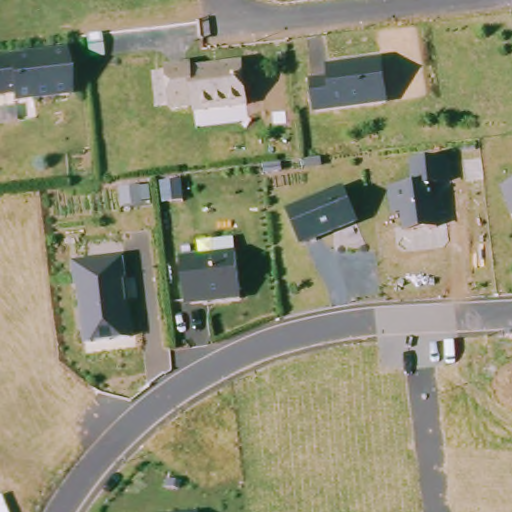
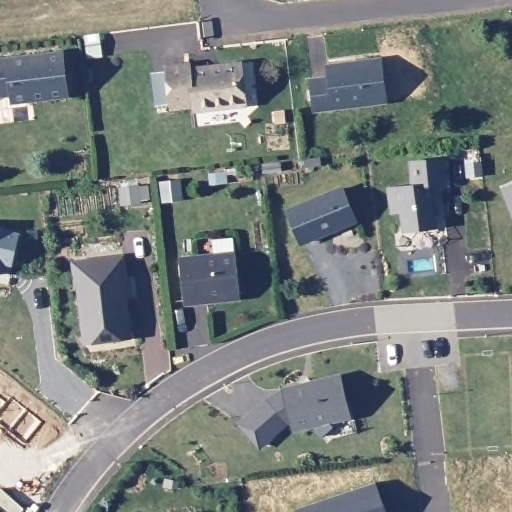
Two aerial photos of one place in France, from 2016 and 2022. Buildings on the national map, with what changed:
unchanged [(68,96),(13,103),(12,95),(0,96),(0,61),(63,54),(68,96)]
unchanged [(315,80),(333,78),(332,66),(383,59),(389,101),(318,111),(315,80)]
unchanged [(188,68),(189,73),(240,68),(245,110),(193,116),(192,111),(170,113),(165,71),(188,68)]
unchanged [(442,159),(445,182),(430,184),(435,227),(403,231),(401,211),(391,213),(388,188),(413,185),(410,163),(442,159)]
unchanged [(279,164),(280,171),(263,173),(262,166),(279,164)]
unchanged [(160,200),(158,182),(176,180),(178,198),(160,200)]
unchanged [(503,187),(512,183),(512,210),(503,187)]
unchanged [(340,189),(355,221),(301,244),(287,211),(340,189)]
new [(12,268),(0,265),(0,234),(18,239),(12,268)]
unchanged [(203,305),(185,308),(179,262),(235,255),(239,295),(240,301),(203,305)]
unchanged [(77,290),(73,290),(70,262),(122,257),(132,339),(83,345),(77,290)]
new [(267,401),(270,403),(287,393),(286,391),(338,378),(348,416),(328,421),(334,427),(322,437),(312,425),(295,429),(288,422),(261,446),(242,424),(267,401)]
new [(377,484),(387,512),(298,512),(297,510),(377,484)]

